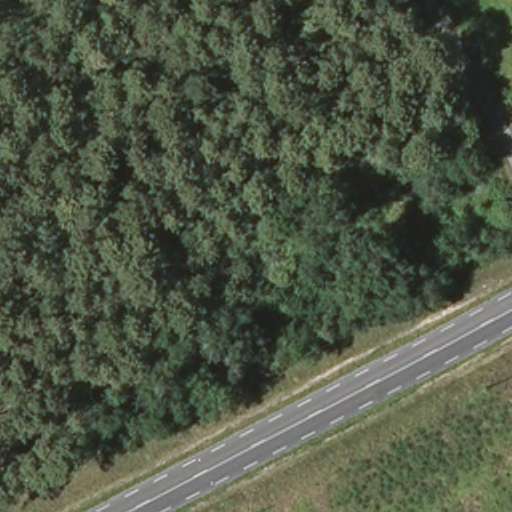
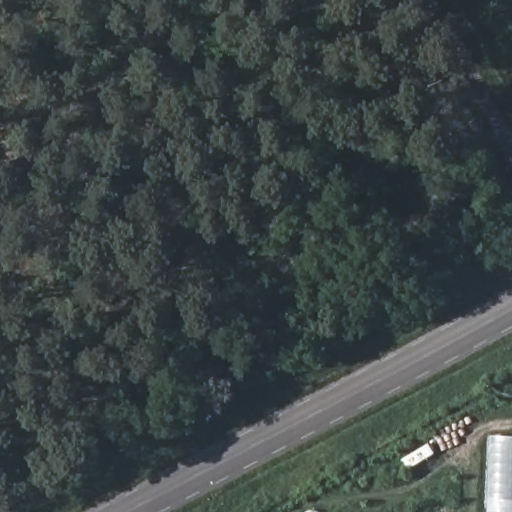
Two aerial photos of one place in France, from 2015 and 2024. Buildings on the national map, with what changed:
new [(489,435),(512,437),(512,512),(486,512),(489,435)]

